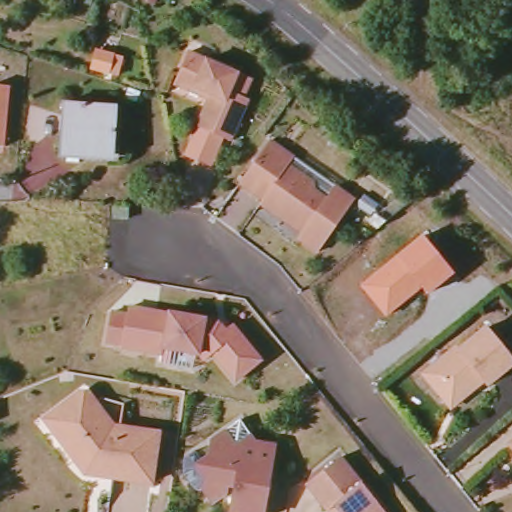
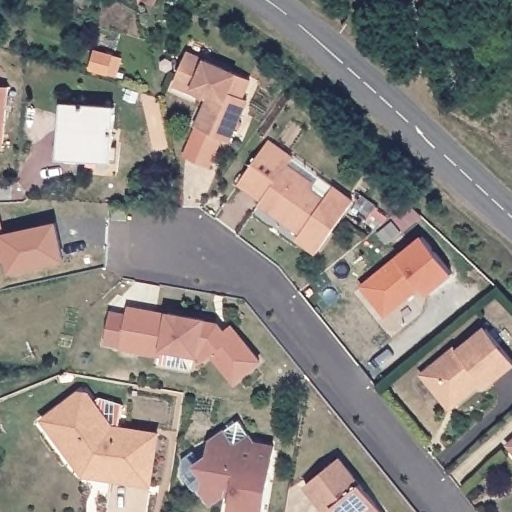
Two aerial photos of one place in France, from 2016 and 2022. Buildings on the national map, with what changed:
unchanged [(225,140),(192,126),(206,94),(171,78),(183,49),(251,79),(225,140)]
unchanged [(109,74),(93,68),(98,51),(115,57),(109,74)]
unchanged [(3,146),(0,146),(0,86),(9,86),(3,146)]
unchanged [(116,106),(113,155),(59,152),(63,103),(116,106)]
unchanged [(269,134),(294,151),(289,160),(314,179),(315,186),(326,193),(334,181),(355,196),(317,248),(303,238),(301,226),(304,224),(294,217),(291,221),(272,207),(275,203),(238,177),(269,134)]
unchanged [(113,207),(128,208),(127,220),(113,218),(113,207)]
new [(5,260),(0,261),(0,217),(1,217),(7,232),(56,221),(66,261),(8,274),(5,260)]
unchanged [(361,285),(398,256),(422,236),(453,274),(426,296),(422,290),(386,317),(361,285)]
unchanged [(234,382),(211,354),(203,360),(196,354),(161,349),(161,355),(120,347),(128,307),(168,315),(169,313),(204,320),(204,321),(217,323),(223,332),(231,326),(236,332),(261,362),(234,382)]
unchanged [(427,369),(453,348),(456,351),(484,328),(512,363),(483,387),(477,379),(471,384),(470,390),(453,404),(442,402),(430,388),(419,375),(427,369)]
unchanged [(113,466),(102,464),(99,467),(83,448),(76,453),(51,424),(70,409),(74,414),(91,401),(113,430),(120,424),(158,431),(150,480),(111,473),(113,466)]
unchanged [(256,443),(276,447),(264,512),(231,512),(235,486),(227,485),(226,494),(213,506),(201,494),(206,480),(196,467),(208,457),(211,441),(240,421),(256,443)]
unchanged [(508,442),(512,438),(512,446),(508,442)]
unchanged [(306,487),(340,458),(384,512),(327,512),(306,487)]

